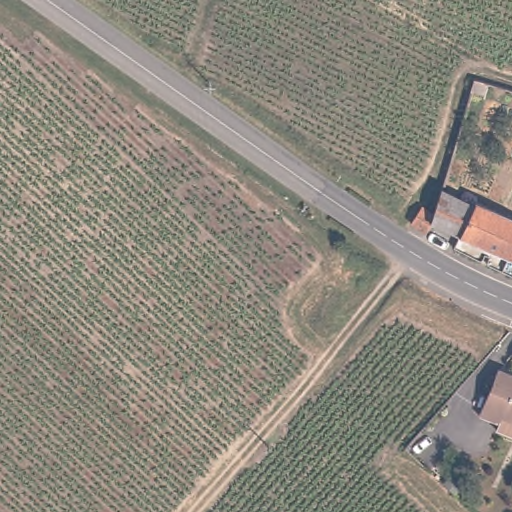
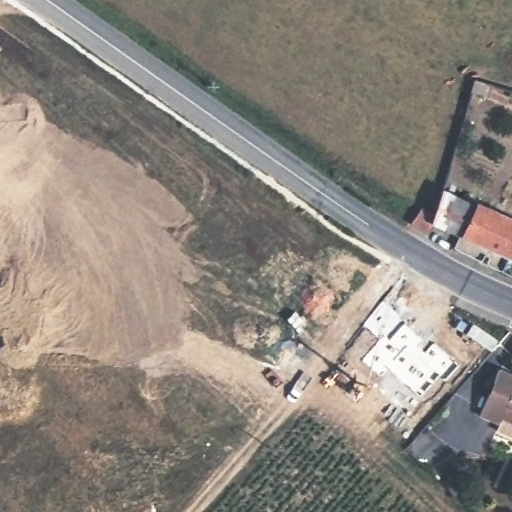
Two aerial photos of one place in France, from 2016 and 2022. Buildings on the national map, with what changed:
unchanged [(488,79),(483,92),(470,89),(474,75),(488,79)]
unchanged [(431,234),(413,222),(419,208),(434,214),(441,194),(476,209),(478,204),(512,218),(512,260),(434,226),(431,234)]
unchanged [(498,414),(478,406),(497,361),(512,367),(512,427),(495,420),(498,414)]

